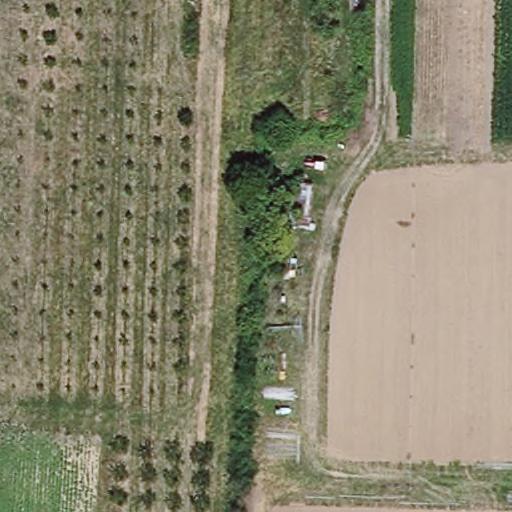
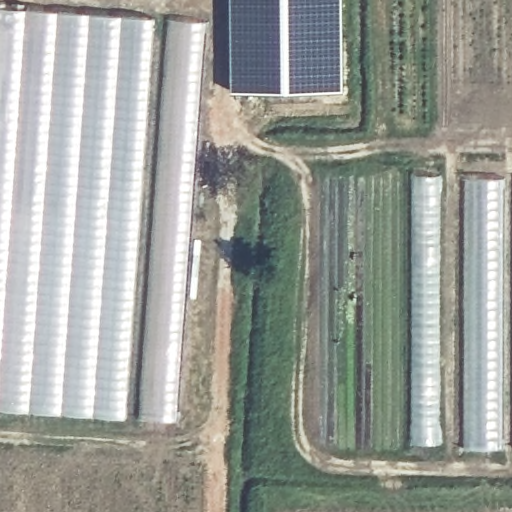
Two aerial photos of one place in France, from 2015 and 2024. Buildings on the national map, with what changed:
demolished [(231,0),(229,62),(182,60),(184,0),(231,0)]
new [(156,16),(149,143),(135,328),(127,418),(0,410),(0,6),(156,16)]
new [(463,178),(504,178),(500,447),(463,448),(461,374),(463,178)]
demolished [(435,183),(462,183),(457,456),(429,455),(435,183)]

